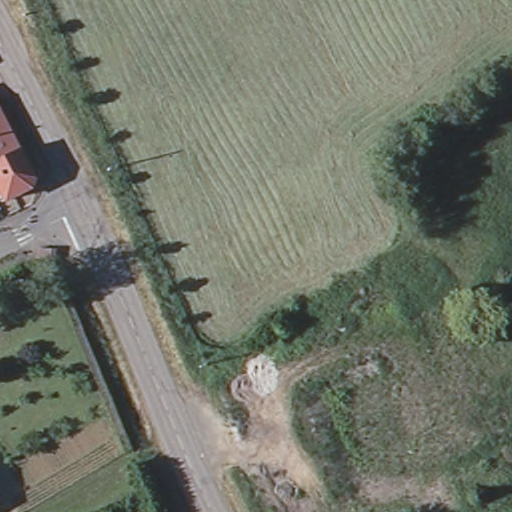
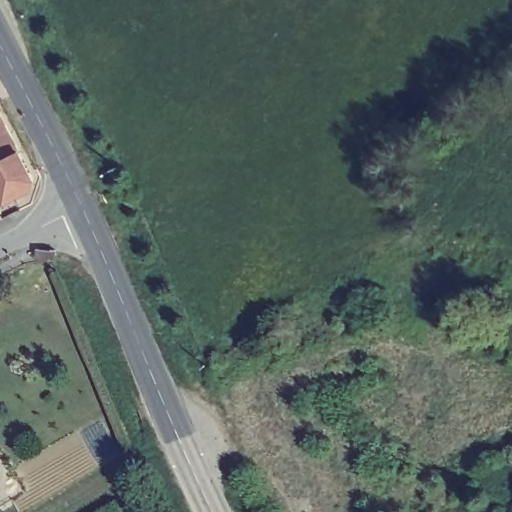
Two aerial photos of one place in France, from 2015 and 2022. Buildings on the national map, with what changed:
unchanged [(20,145),(38,180),(34,189),(10,200),(0,181),(0,107),(20,145)]

